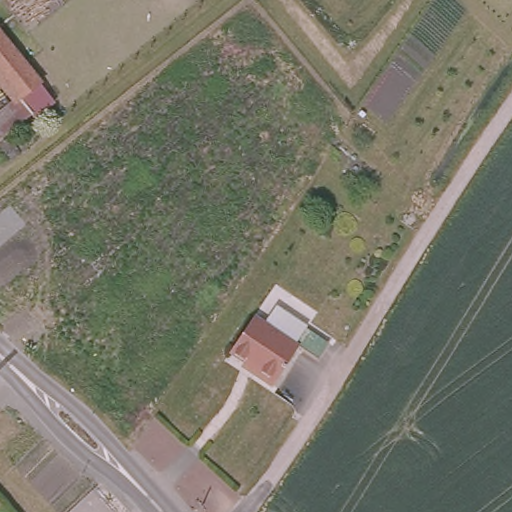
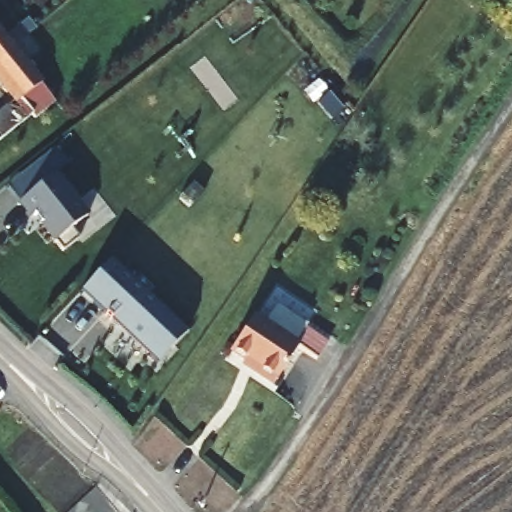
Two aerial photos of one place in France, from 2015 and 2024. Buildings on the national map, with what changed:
unchanged [(55,102),(37,117),(30,115),(12,95),(0,78),(0,27),(46,89),(55,102)]
unchanged [(30,115),(0,140),(0,105),(12,95),(30,115)]
new [(71,228),(79,237),(64,249),(36,213),(31,217),(19,201),(55,172),(88,215),(71,228)]
new [(157,364),(110,321),(113,318),(84,292),(112,260),(189,331),(157,364)]
unchanged [(329,345),(317,363),(301,353),(276,391),(255,378),(257,372),(231,353),(252,320),(264,328),(276,310),(329,345)]

